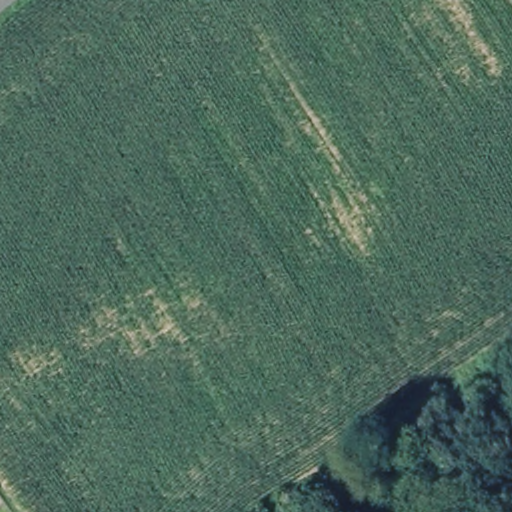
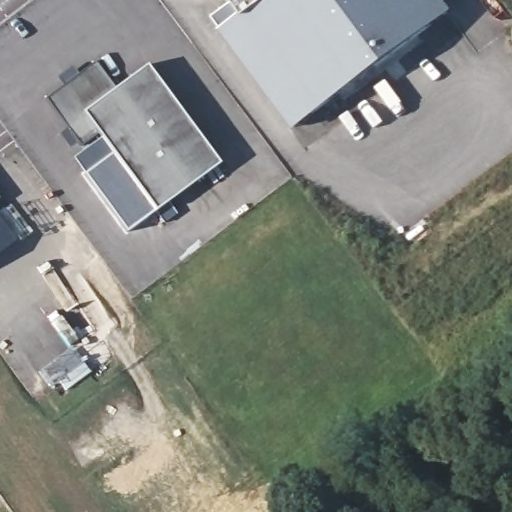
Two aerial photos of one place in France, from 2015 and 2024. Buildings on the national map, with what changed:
new [(218,31),(220,29),(211,17),(232,0),(442,0),(452,12),(293,130),(218,31)]
new [(47,96),(64,85),(57,77),(72,64),(80,74),(95,60),(115,89),(147,64),(220,165),(157,211),(96,129),(80,142),(47,96)]
new [(126,232),(84,174),(73,158),(102,137),(157,211),(126,232)]
new [(16,240),(0,252),(0,221),(16,240)]

